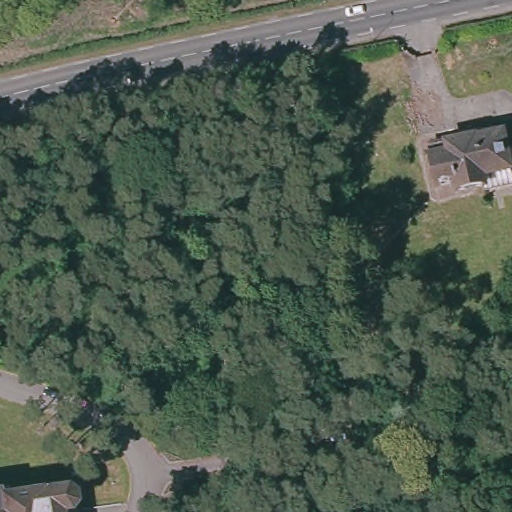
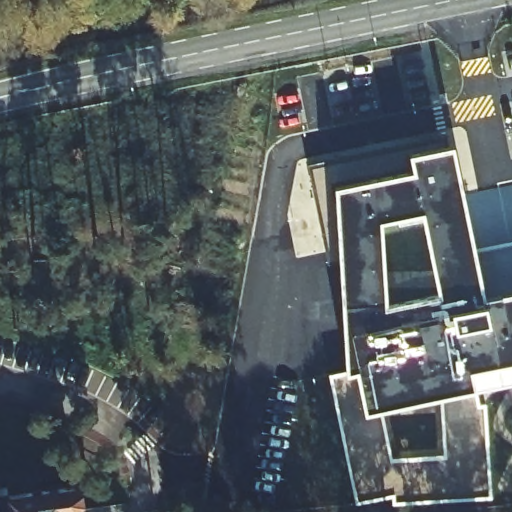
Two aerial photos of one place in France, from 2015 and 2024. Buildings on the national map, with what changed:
demolished [(451,191),(426,196),(419,161),(426,159),(424,151),(467,142),(466,139),(486,135),(487,143),(498,140),(499,144),(504,144),(510,171),(503,172),(506,186),(484,191),(480,192),(481,195),(452,201),(451,191)]
new [(410,153),(413,169),(336,184),(341,259),(328,262),(311,166),(444,139),(446,146),(410,153)]
new [(481,404),(487,404),(493,497),(392,502),(392,496),(358,501),(330,374),(347,370),(341,259),(336,184),(413,169),(410,153),(446,146),(454,145),(475,249),(485,298),(512,292),(512,383),(480,389),(481,404)]
new [(475,249),(512,241),(512,292),(485,298),(475,249)]
unchanged [(10,485),(13,495),(65,483),(79,488),(83,500),(66,511),(66,512),(0,512),(0,487),(10,485)]

